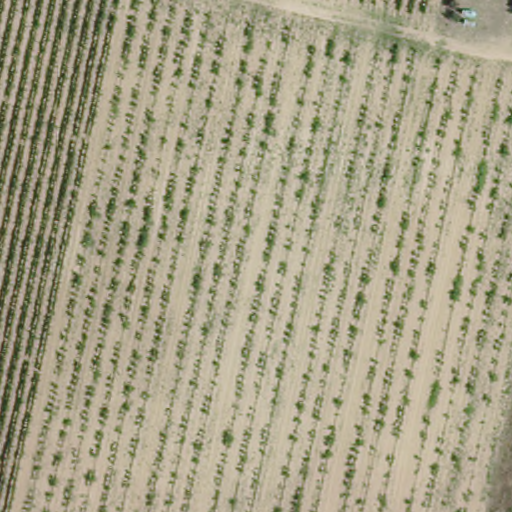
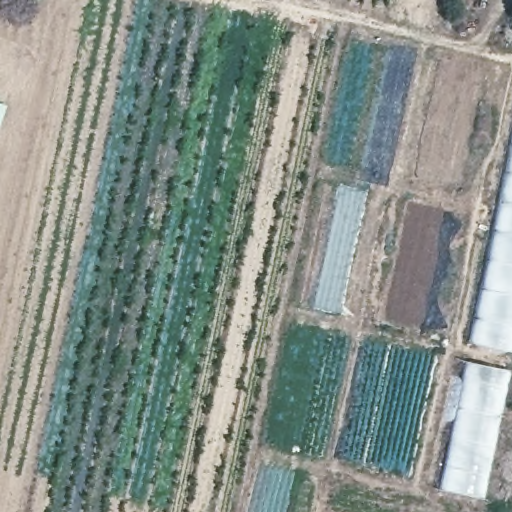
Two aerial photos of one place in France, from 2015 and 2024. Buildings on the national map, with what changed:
new [(512,353),(468,342),(512,136),(512,353)]
new [(512,370),(512,372),(485,499),(440,490),(467,361),(512,370)]

